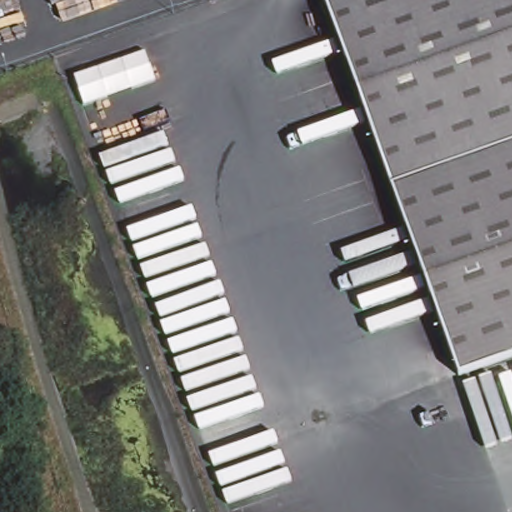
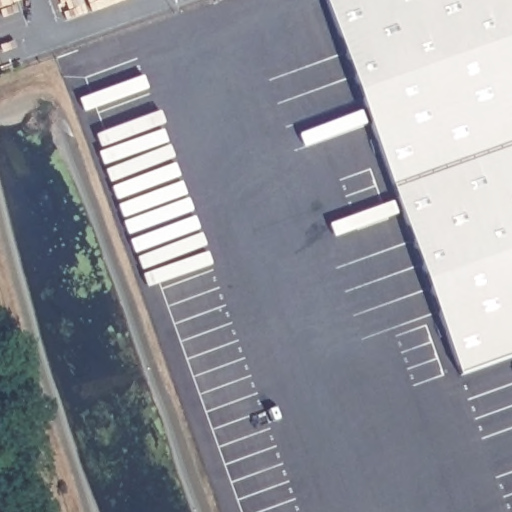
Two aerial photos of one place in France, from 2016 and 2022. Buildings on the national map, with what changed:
unchanged [(406,229),(362,111),(322,0),(512,0),(512,355),(457,374),(406,229)]

